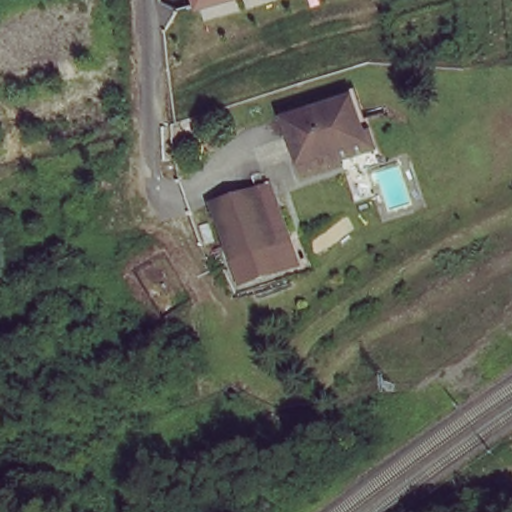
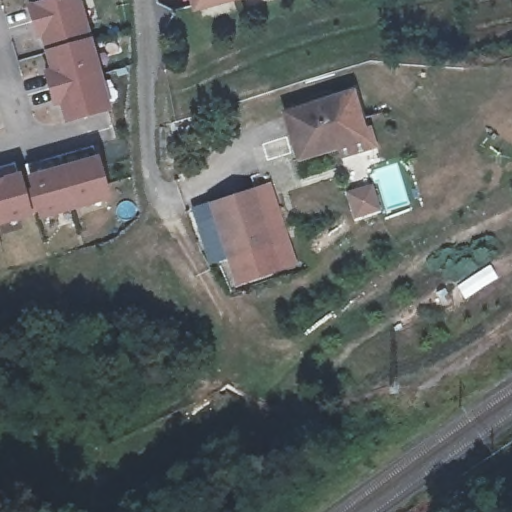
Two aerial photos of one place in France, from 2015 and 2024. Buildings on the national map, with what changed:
new [(86,0),(115,106),(74,117),(68,98),(62,100),(53,70),(60,68),(50,31),(45,32),(37,4),(49,0),(86,0)]
unchanged [(192,0),(228,0),(195,9),(192,0)]
unchanged [(343,153),(302,165),(289,118),(356,99),(368,138),(370,145),(343,153)]
new [(37,175),(33,161),(100,142),(115,194),(47,213),(46,208),(37,211),(0,221),(0,166),(22,160),(31,190),(40,188),(37,175)]
unchanged [(273,183),(299,265),(236,283),(209,204),(273,183)]

